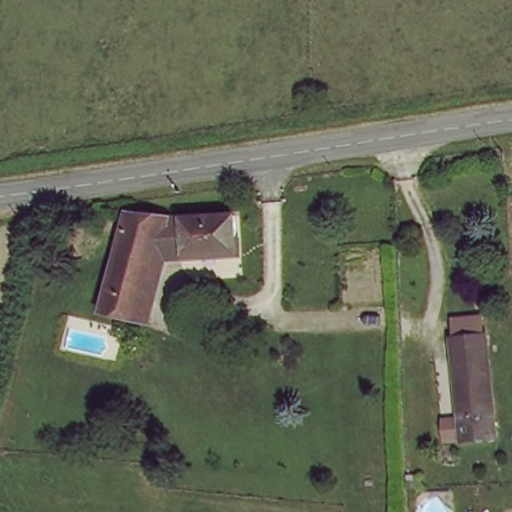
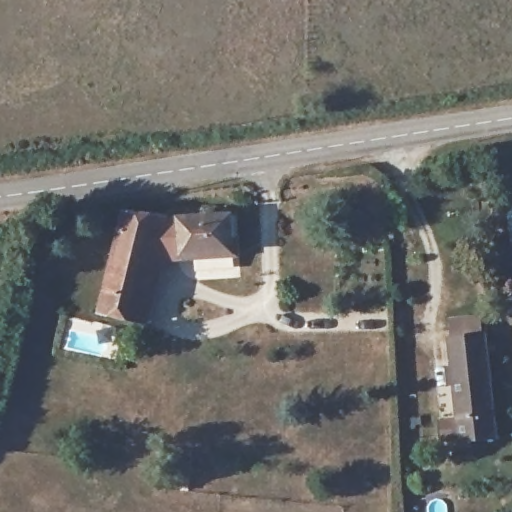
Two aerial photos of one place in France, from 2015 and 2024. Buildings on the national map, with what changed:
unchanged [(235,223),(235,265),(148,263),(137,326),(153,331),(151,349),(103,339),(122,223),(235,223)]
unchanged [(490,340),(500,442),(468,446),(458,344),(490,340)]

